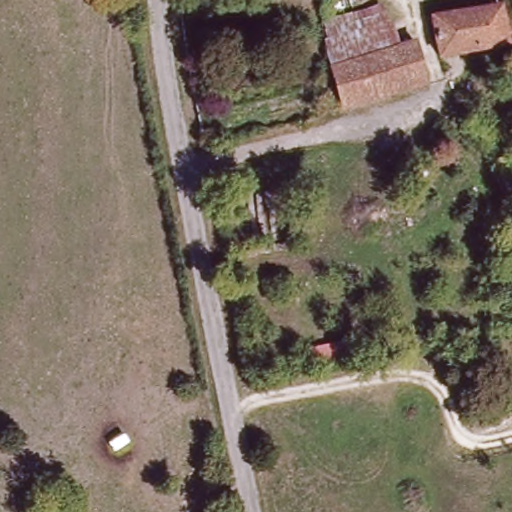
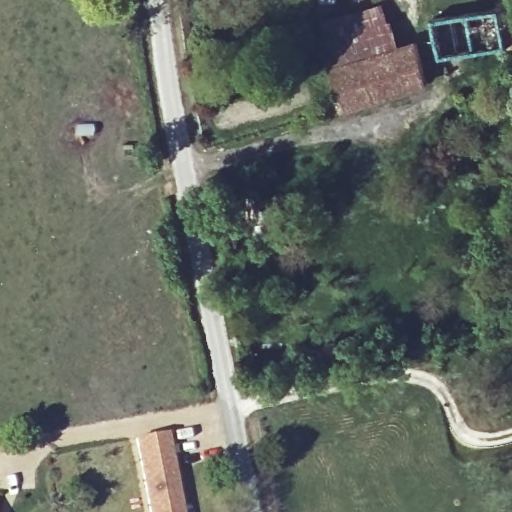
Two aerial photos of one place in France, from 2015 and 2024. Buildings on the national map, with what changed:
unchanged [(343,115),(331,70),(322,26),(380,10),(395,49),(415,42),(430,90),(343,115)]
unchanged [(503,10),(505,20),(512,19),(512,48),(442,60),(435,22),(503,10)]
new [(167,432),(182,512),(151,512),(137,437),(167,432)]

